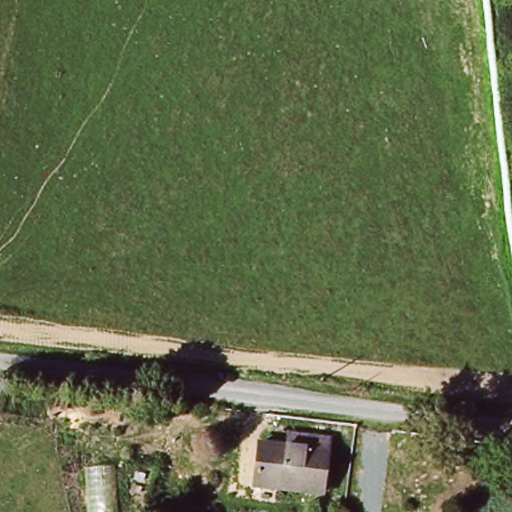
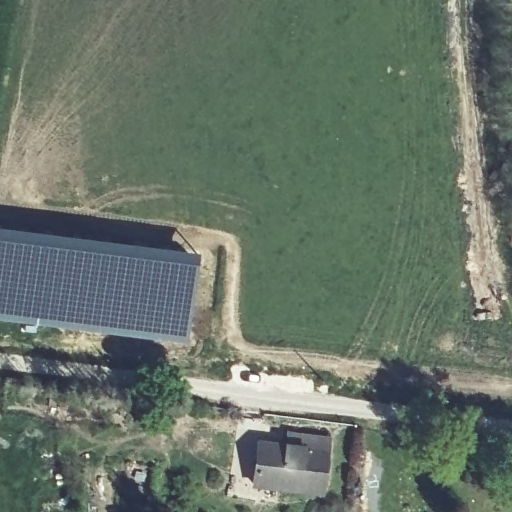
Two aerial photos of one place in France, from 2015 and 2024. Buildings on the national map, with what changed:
new [(198,252),(186,343),(41,323),(32,323),(0,319),(0,227),(198,252)]
unchanged [(284,439),(323,443),(318,498),(253,492),(257,449),(282,451),(284,439)]

